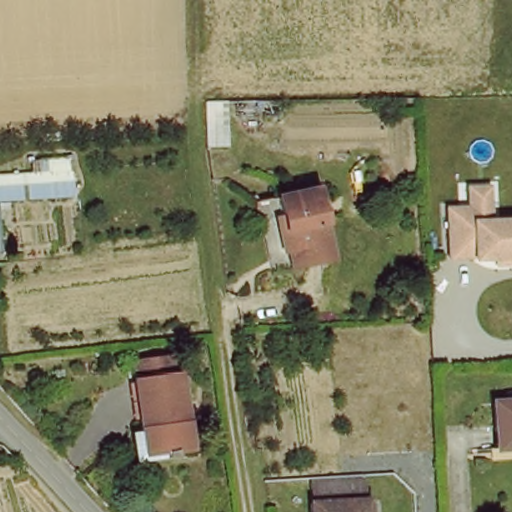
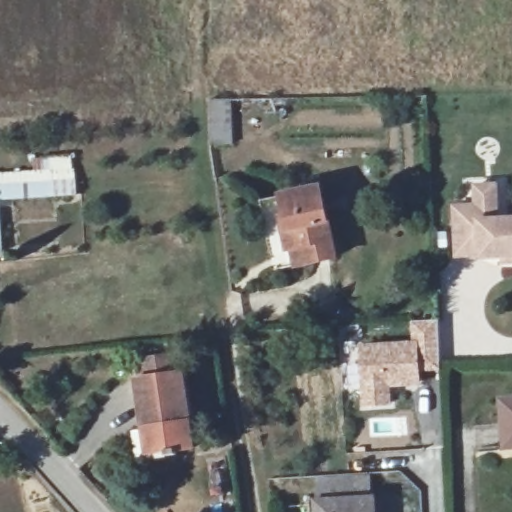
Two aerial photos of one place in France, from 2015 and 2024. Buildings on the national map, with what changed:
unchanged [(67,195),(4,200),(3,184),(66,179),(67,195)]
unchanged [(454,268),(450,205),(472,204),(473,185),(499,184),(502,217),(512,217),(512,264),(454,268)]
unchanged [(304,246),(291,247),(286,191),(326,187),(331,261),(306,265),(304,246)]
new [(413,342),(412,323),(438,321),(440,372),(420,372),(421,388),(392,389),(393,406),(363,408),(359,347),(413,342)]
unchanged [(138,367),(141,366),(138,345),(175,338),(177,360),(181,360),(196,460),(151,466),(138,367)]
unchanged [(506,396),(512,396),(512,441),(510,441),(506,396)]
unchanged [(323,498),(319,480),(369,470),(373,488),(382,488),(386,512),(318,512),(316,500),(323,498)]

